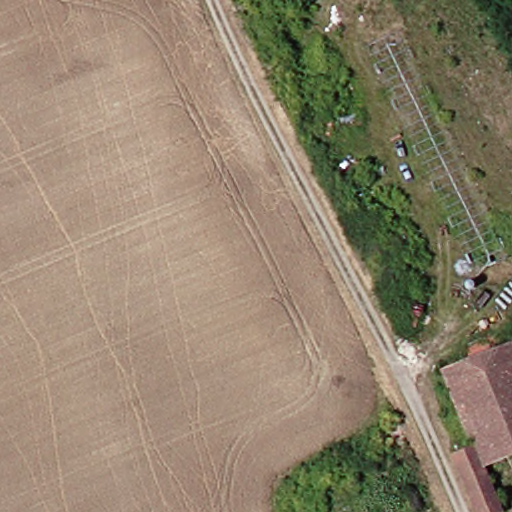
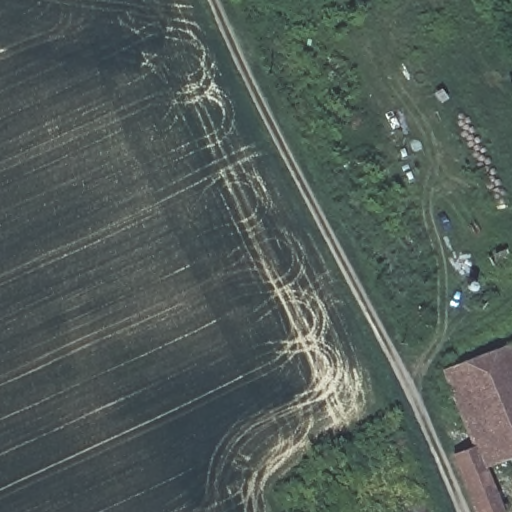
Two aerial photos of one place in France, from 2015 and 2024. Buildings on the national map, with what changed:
unchanged [(492,477),(498,494),(477,502),(455,453),(479,442),(452,370),(512,346),(512,425),(490,434),(500,462),(504,472),(492,477)]
unchanged [(512,425),(512,457),(500,462),(490,434),(512,425)]

